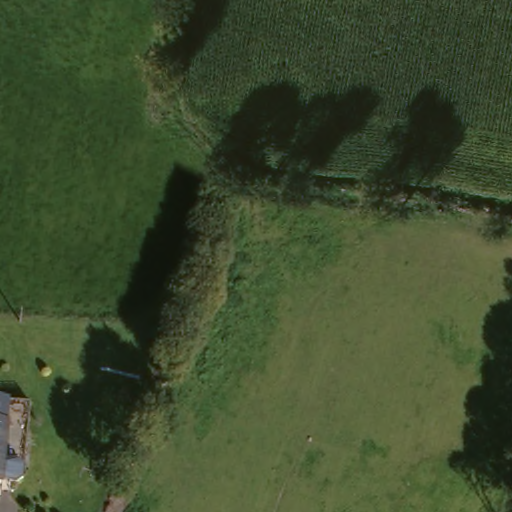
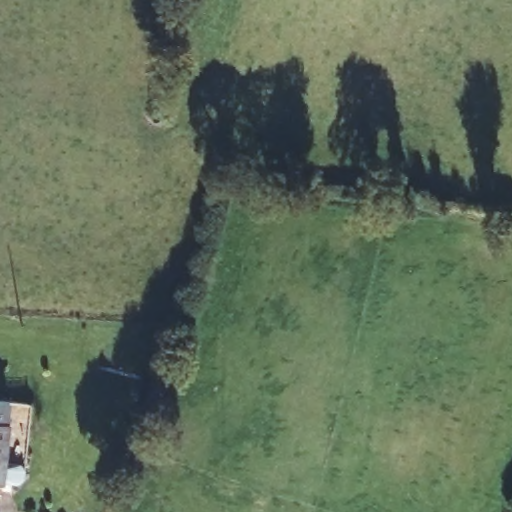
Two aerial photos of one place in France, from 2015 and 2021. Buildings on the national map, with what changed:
unchanged [(11,424),(8,464),(23,466),(28,471),(26,481),(21,486),(6,485),(0,484),(0,423),(11,424)]

